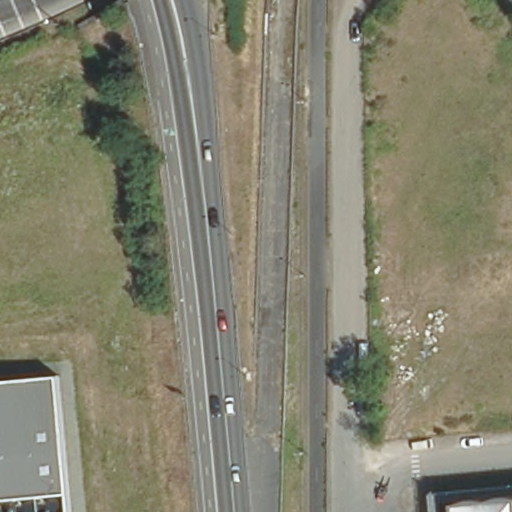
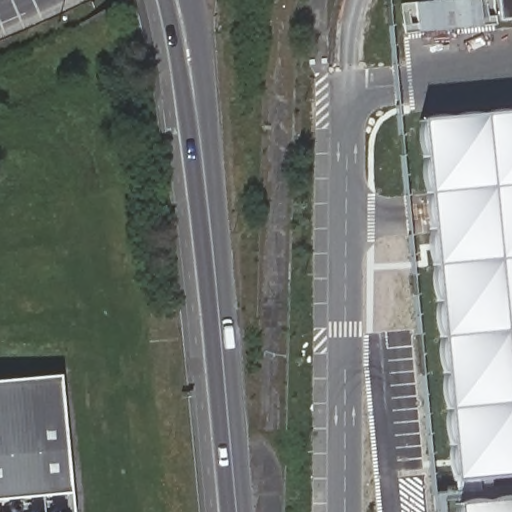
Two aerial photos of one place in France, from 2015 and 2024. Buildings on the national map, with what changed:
new [(435,0),(492,0),(494,24),(481,25),(418,31),(402,33),(399,4),(414,2),(435,0)]
new [(499,21),(498,0),(512,0),(512,19),(499,21)]
new [(512,113),(512,458),(451,464),(407,122),(512,113)]
unchanged [(0,380),(60,375),(73,512),(0,512),(0,380)]
unchanged [(451,500),(512,493),(512,512),(452,512),(451,500)]

